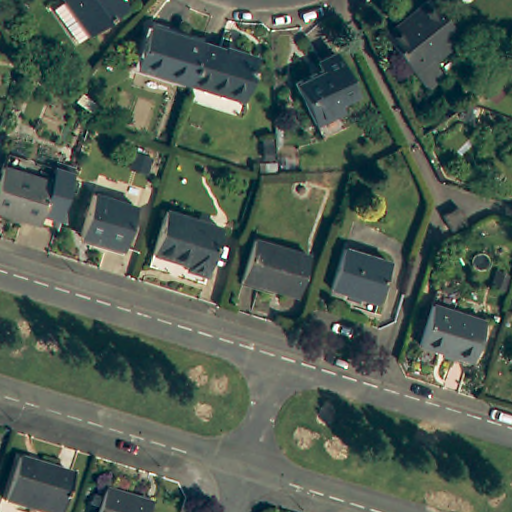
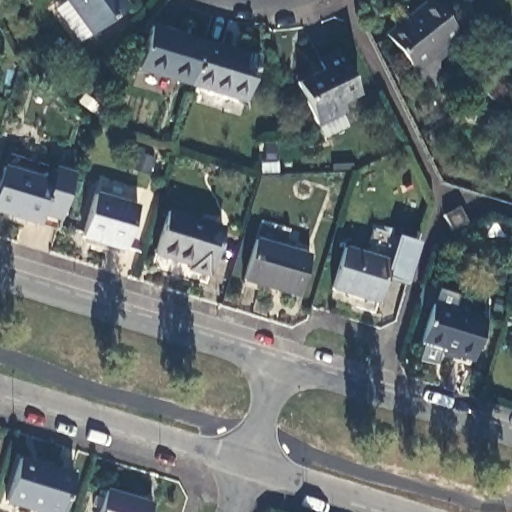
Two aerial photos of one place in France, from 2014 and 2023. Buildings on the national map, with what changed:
unchanged [(55,5),(62,0),(124,0),(127,5),(91,31),(80,39),(55,5)]
unchanged [(430,49),(440,62),(423,75),(410,57),(383,25),(381,21),(397,7),(406,0),(436,0),(454,22),(457,26),(430,49)]
unchanged [(191,86),(138,70),(152,27),(205,43),(191,86)]
unchanged [(258,60),(245,102),(191,86),(205,43),(258,60)]
unchanged [(318,125),(297,84),(323,70),(321,64),(338,55),(359,96),(342,105),(345,112),(318,125)]
unchanged [(8,162),(57,178),(45,220),(0,206),(0,189),(8,162)]
unchanged [(95,195),(138,207),(125,251),(82,237),(95,195)]
unchanged [(452,230),(444,215),(459,207),(467,222),(452,230)]
unchanged [(155,255),(168,212),(222,229),(207,277),(186,270),(187,265),(155,255)]
unchanged [(256,240),(310,257),(297,297),(244,280),(256,240)]
unchanged [(345,248),(391,262),(378,303),(332,288),(345,248)]
unchanged [(427,300),(480,316),(467,357),(415,340),(427,300)]
unchanged [(62,512),(45,512),(6,500),(19,458),(74,475),(62,512)]
unchanged [(150,512),(99,512),(106,490),(152,503),(150,512)]

